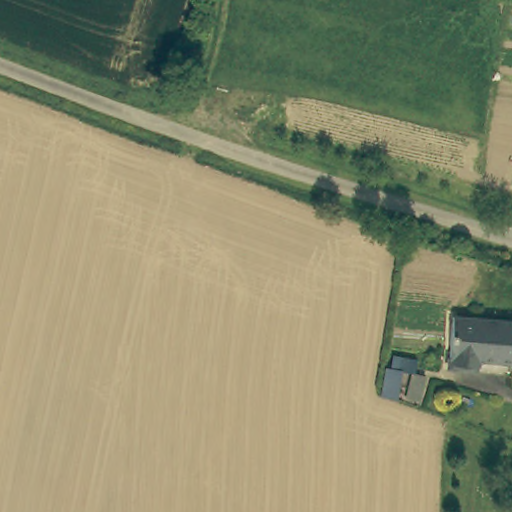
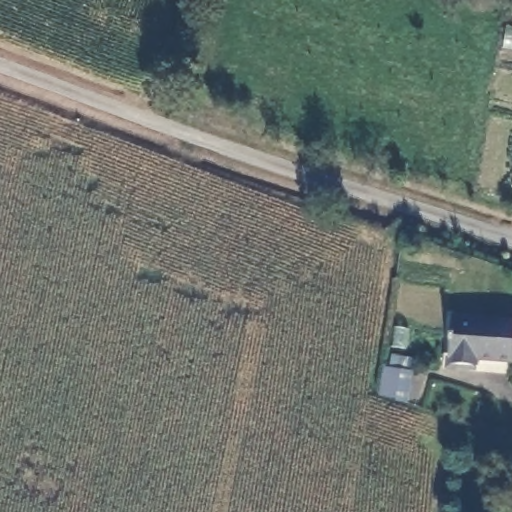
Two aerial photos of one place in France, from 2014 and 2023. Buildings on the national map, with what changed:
unchanged [(480,355),(480,362),(455,360),(455,312),(512,315),(512,356),(480,355)]

